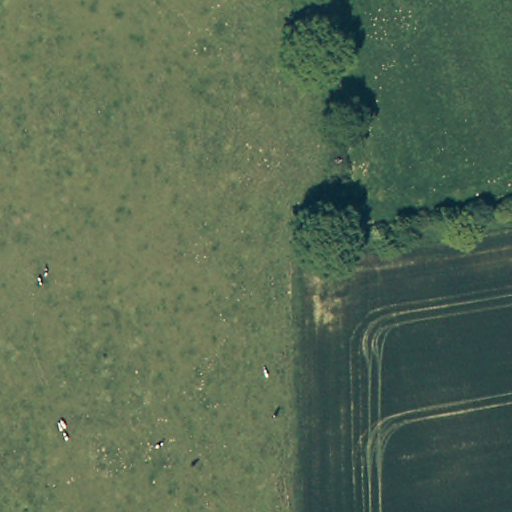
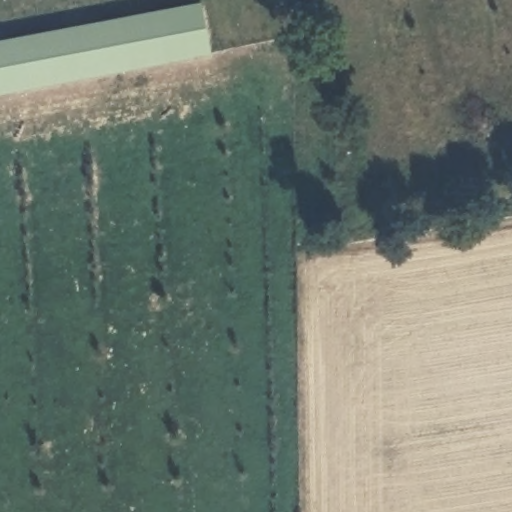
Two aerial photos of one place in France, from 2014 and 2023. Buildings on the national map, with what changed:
new [(0,98),(0,44),(203,4),(213,57),(0,98)]

